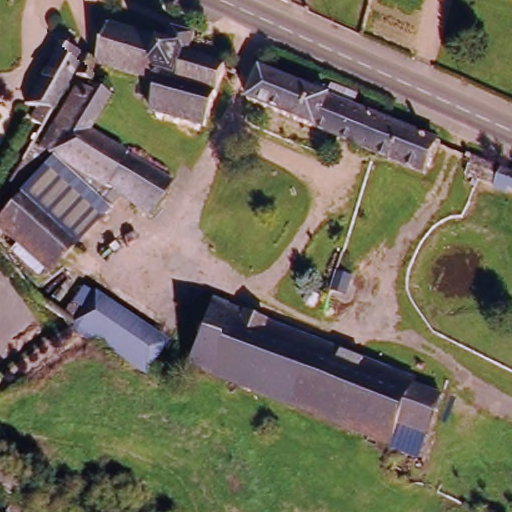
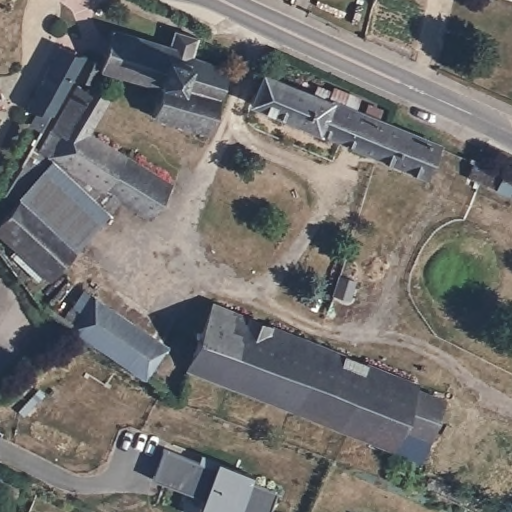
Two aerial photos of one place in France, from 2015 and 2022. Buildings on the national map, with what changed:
unchanged [(112,30),(162,48),(166,36),(193,46),(190,58),(222,72),(200,131),(195,130),(192,129),(160,118),(149,114),(157,89),(99,65),(112,30)]
unchanged [(36,136),(29,132),(36,120),(25,118),(55,51),(75,58),(67,76),(45,121),(37,137),(36,136)]
unchanged [(419,175),(244,105),(255,76),(310,98),(314,85),(328,91),(330,85),(349,92),(344,110),(378,123),(430,144),(419,175)]
unchanged [(101,194),(44,156),(55,136),(49,131),(77,86),(100,101),(83,134),(122,160),(101,194)]
unchanged [(482,156),(512,167),(512,179),(500,174),(495,187),(453,172),(462,148),(482,156)]
unchanged [(165,188),(144,221),(101,194),(122,160),(165,188)]
unchanged [(45,272),(0,230),(0,211),(45,165),(99,216),(45,272)]
unchanged [(83,295),(161,338),(145,369),(100,345),(79,335),(73,339),(58,330),(83,295)]
unchanged [(327,424),(273,402),(268,409),(207,384),(184,374),(211,304),(344,359),(415,386),(412,391),(397,432),(390,450),(327,424)]
unchanged [(445,404),(430,445),(397,432),(412,391),(445,404)]
new [(164,449),(215,469),(217,462),(252,476),(250,483),(277,493),(269,512),(198,512),(205,495),(190,489),(184,492),(152,480),(164,449)]
new [(182,449),(217,462),(215,469),(180,456),(182,449)]
new [(11,506),(0,499),(0,471),(23,485),(11,506)]
new [(190,489),(205,495),(204,500),(184,492),(190,489)]

